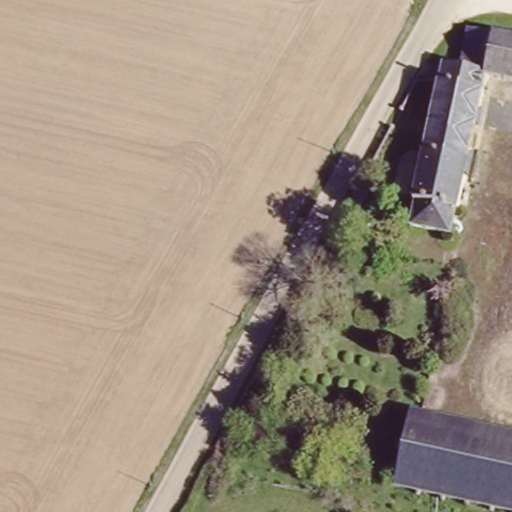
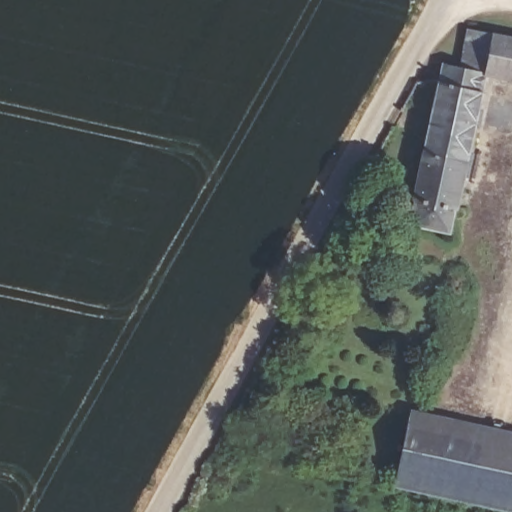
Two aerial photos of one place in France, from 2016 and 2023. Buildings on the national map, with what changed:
unchanged [(467,26),(512,35),(512,79),(487,75),(488,70),(460,65),(467,26)]
unchanged [(442,62),(460,65),(488,70),(487,75),(449,231),(408,223),(442,62)]
unchanged [(359,185),(385,199),(368,230),(342,215),(359,185)]
unchanged [(395,483),(412,408),(512,426),(512,510),(395,483)]

